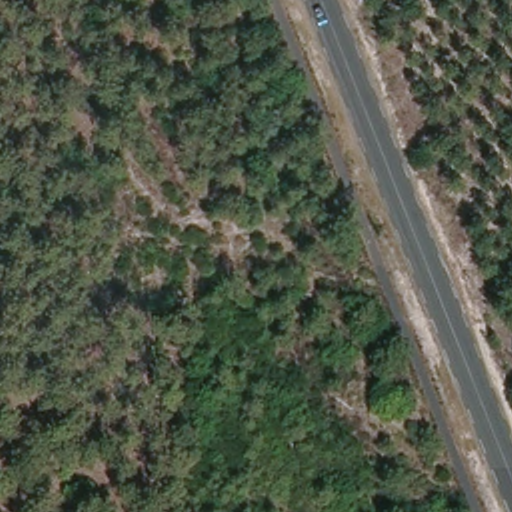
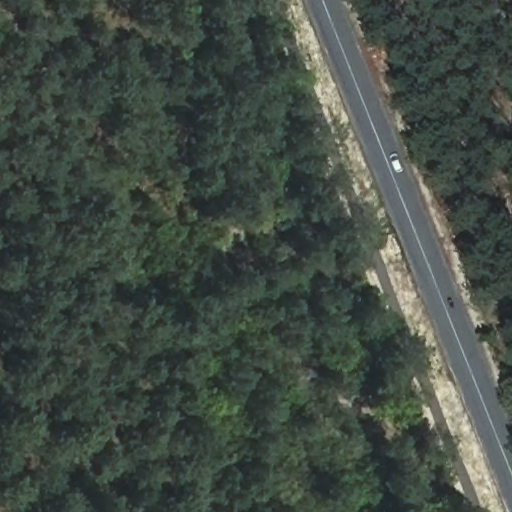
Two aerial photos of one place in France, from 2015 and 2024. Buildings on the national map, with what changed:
[]

